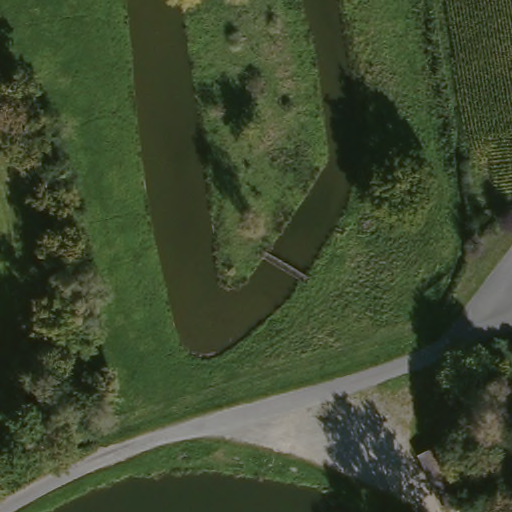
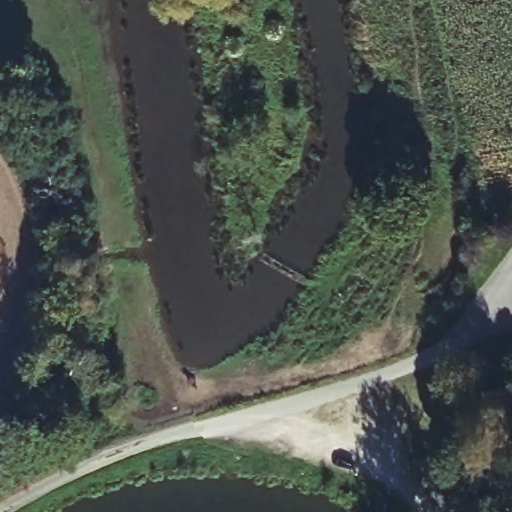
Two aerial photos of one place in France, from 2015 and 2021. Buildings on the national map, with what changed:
unchanged [(468,512),(442,512),(421,465),(446,453),(472,510),(468,512)]

